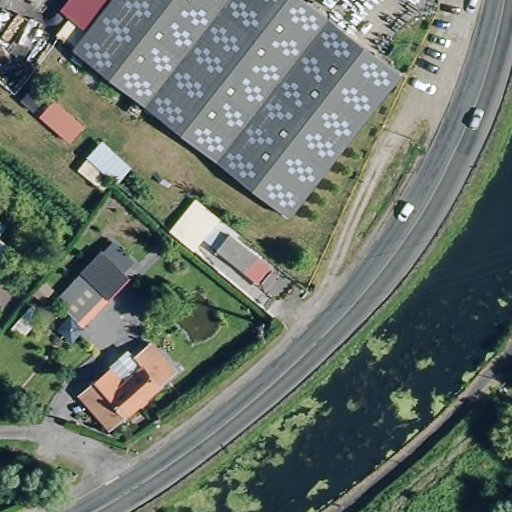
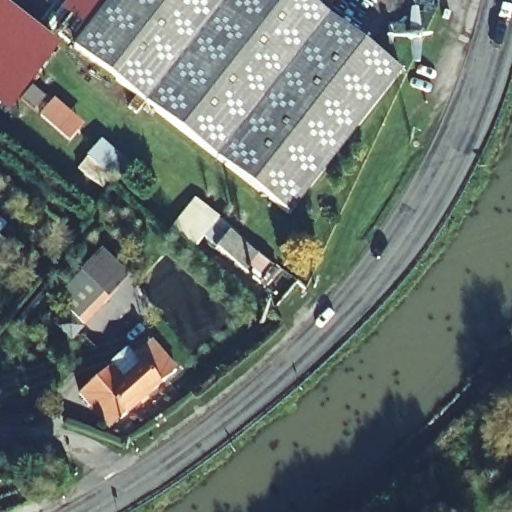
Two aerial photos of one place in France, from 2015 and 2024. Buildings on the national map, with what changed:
unchanged [(72,47),(56,34),(71,17),(61,8),(67,0),(110,0),(72,47)]
unchanged [(396,76),(286,215),(72,47),(110,0),(301,0),(396,76)]
new [(8,112),(0,106),(0,1),(61,48),(8,112)]
unchanged [(198,253),(172,232),(195,200),(196,201),(222,222),(198,253)]
unchanged [(0,235),(0,220),(7,226),(0,235)]
unchanged [(266,289),(220,255),(236,237),(280,271),(266,289)]
unchanged [(0,266),(0,239),(13,249),(0,266)]
unchanged [(85,326),(55,297),(91,260),(120,288),(85,326)]
unchanged [(170,355),(163,361),(173,372),(118,421),(86,389),(112,366),(125,377),(160,346),(170,355)]

